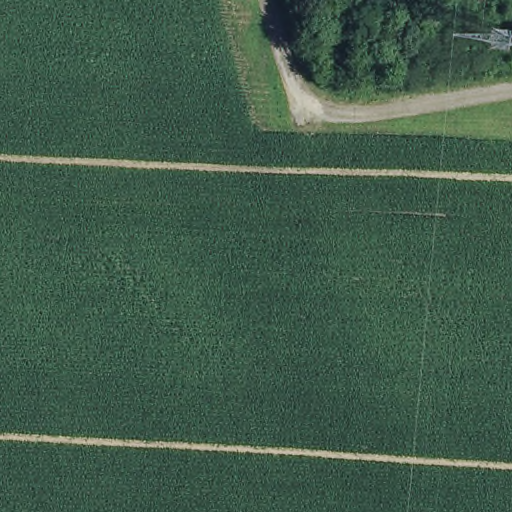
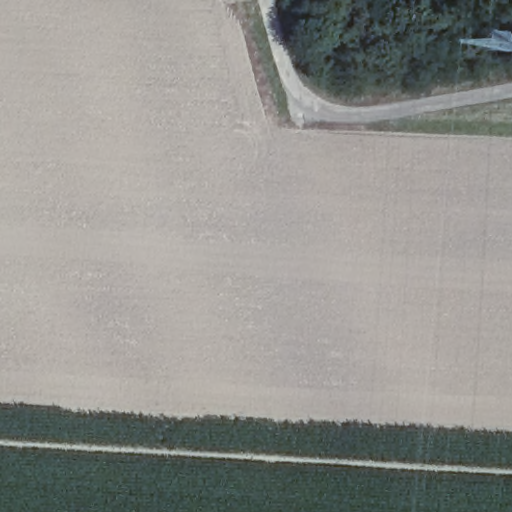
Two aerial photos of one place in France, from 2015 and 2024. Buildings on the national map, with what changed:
unchanged [(482,54),(484,28),(509,30),(507,55),(482,54)]

